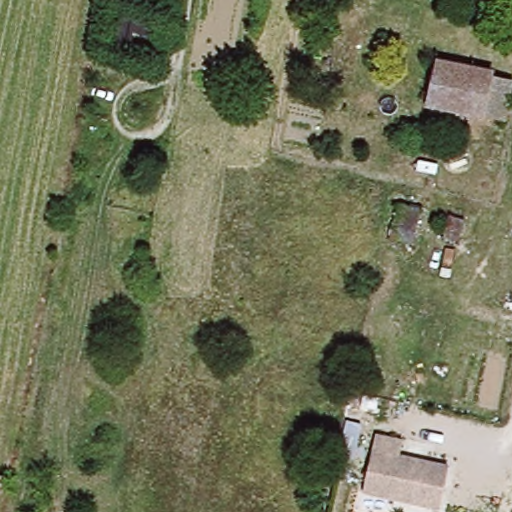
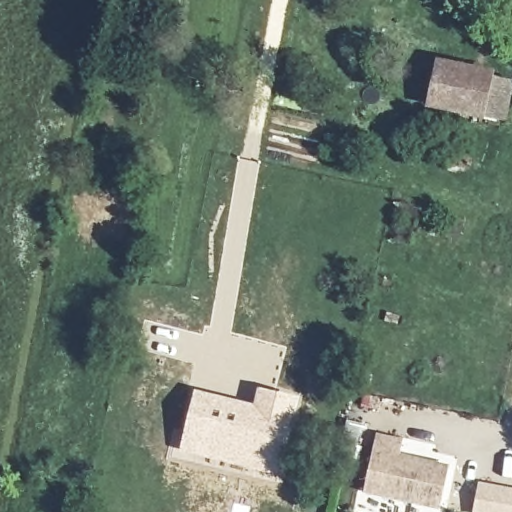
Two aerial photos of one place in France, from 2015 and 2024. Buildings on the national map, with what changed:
unchanged [(113,0),(132,0),(131,4),(113,0)]
unchanged [(108,30),(136,35),(131,60),(103,52),(108,30)]
unchanged [(502,122),(481,117),(428,106),(437,62),(491,73),(490,77),(511,82),(502,122)]
unchanged [(415,242),(392,236),(400,205),(423,210),(415,242)]
unchanged [(458,240),(444,237),(449,217),(463,220),(458,240)]
new [(193,388),(251,402),(256,385),(302,396),(279,478),(212,462),(177,452),(193,388)]
demolished [(425,396),(479,407),(476,424),(469,422),(466,440),(447,436),(451,418),(422,412),(425,396)]
unchanged [(439,512),(432,512),(363,496),(376,440),(402,445),(399,461),(448,472),(439,512)]
new [(512,492),(512,512),(473,512),(478,485),(512,492)]

